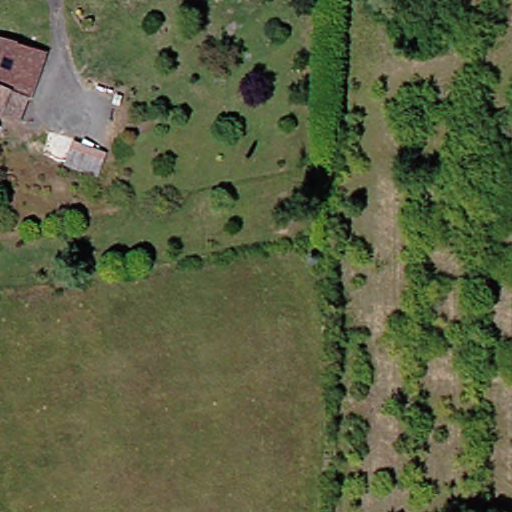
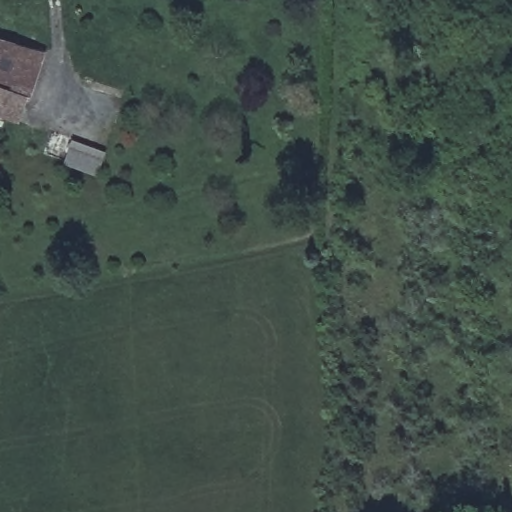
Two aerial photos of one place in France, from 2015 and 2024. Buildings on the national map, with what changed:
unchanged [(0,112),(0,35),(45,41),(37,98),(33,116),(13,114),(0,112)]

